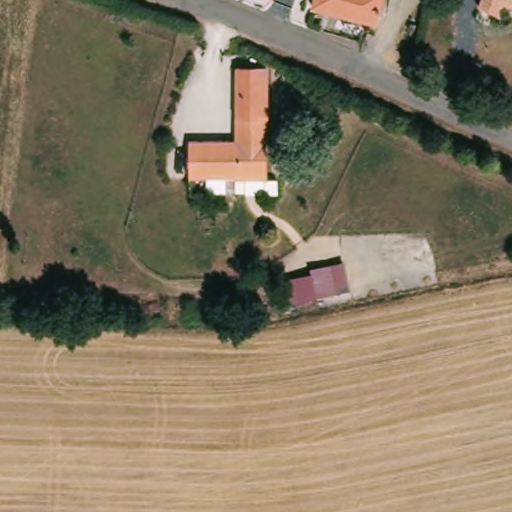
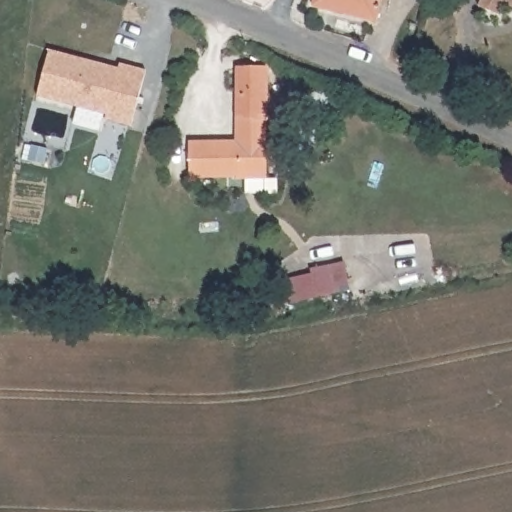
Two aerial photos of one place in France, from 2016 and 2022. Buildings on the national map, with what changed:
unchanged [(375,29),(312,11),(316,0),(384,0),(375,29)]
unchanged [(503,3),(498,15),(478,6),(481,0),(512,0),(512,6),(503,3)]
new [(49,49),(118,67),(119,63),(146,70),(132,128),(105,121),(107,114),(37,95),(49,49)]
unchanged [(268,68),(270,179),(240,179),(240,178),(239,143),(238,68),(268,68)]
unchanged [(239,143),(240,178),(191,178),(191,143),(239,143)]
unchanged [(275,281),(311,273),(310,268),(344,262),(350,289),(316,295),(317,297),(279,305),(275,281)]

